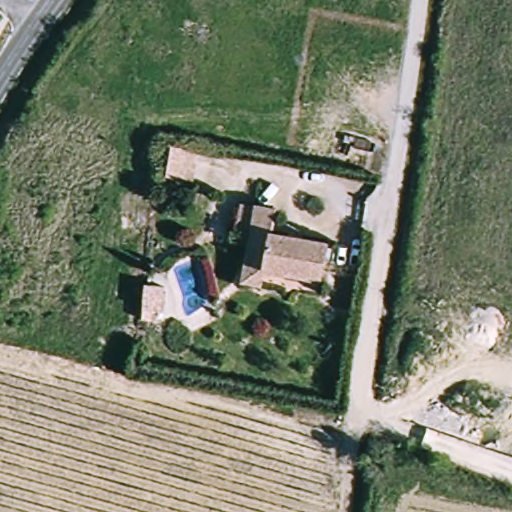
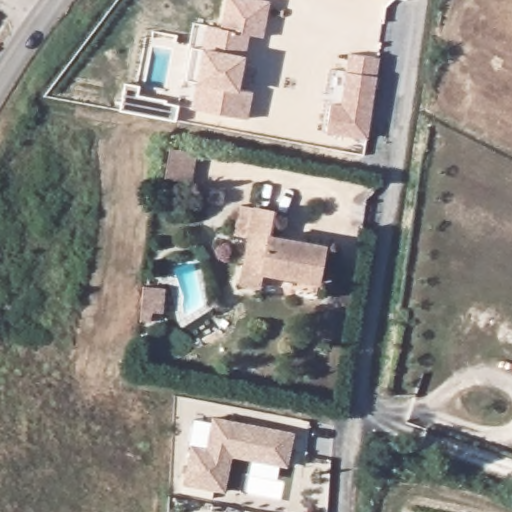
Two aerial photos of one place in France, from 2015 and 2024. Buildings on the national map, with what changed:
new [(190,108),(195,83),(185,80),(191,47),(202,48),(206,25),(218,27),(225,0),(264,0),(271,1),(264,37),(250,34),(246,54),(244,63),(253,65),(248,86),(241,85),(239,90),(253,91),(248,119),(190,108)]
new [(377,59),(365,139),(324,133),(328,104),(340,106),(349,54),(377,59)]
unchanged [(197,143),(193,174),(167,170),(171,140),(197,143)]
unchanged [(241,287),(243,275),(248,242),(233,239),(238,207),(254,209),(270,212),(266,235),(323,244),(315,286),(314,297),(241,287)]
unchanged [(134,313),(135,303),(139,278),(160,281),(157,305),(147,304),(146,314),(134,313)]
demolished [(125,304),(113,303),(115,293),(126,294),(125,304)]
new [(215,446),(220,414),(301,427),(296,460),(285,458),(263,455),(239,451),(234,488),(194,482),(200,444),(215,446)]

